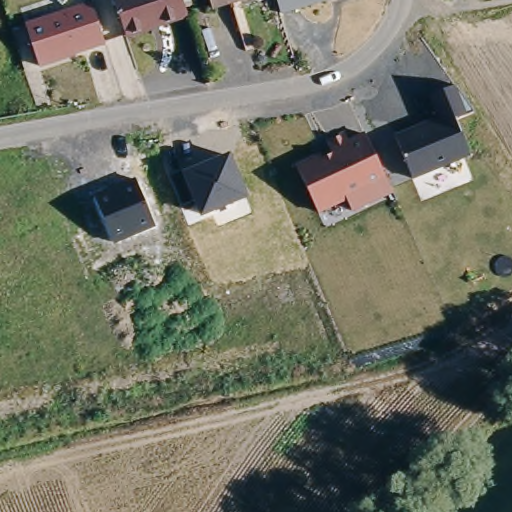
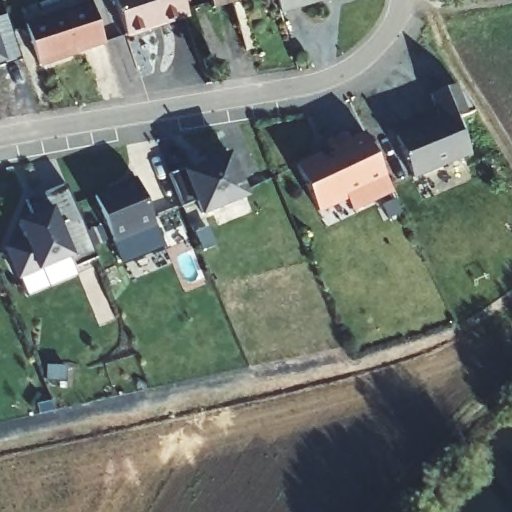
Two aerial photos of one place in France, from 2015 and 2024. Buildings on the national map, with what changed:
unchanged [(92,0),(102,30),(57,45),(57,47),(35,54),(22,12),(60,0),(92,0)]
unchanged [(147,24),(145,26),(130,32),(125,30),(115,0),(184,0),(187,10),(147,24)]
unchanged [(207,0),(224,0),(208,5),(207,0)]
unchanged [(276,0),(330,0),(281,15),(276,0)]
new [(0,65),(0,46),(5,64),(0,65)]
unchanged [(428,95),(456,85),(473,111),(466,114),(455,119),(460,134),(472,156),(413,179),(395,134),(437,117),(428,95)]
unchanged [(350,208),(345,197),(318,211),(297,167),(365,134),(390,189),(350,208)]
unchanged [(170,175),(182,170),(230,152),(248,197),(202,217),(195,201),(182,205),(170,175)]
unchanged [(165,250),(123,265),(94,195),(135,177),(165,250)]
new [(20,220),(33,215),(27,197),(28,197),(45,190),(67,180),(98,255),(76,265),(72,254),(20,276),(7,245),(27,237),(20,220)]

